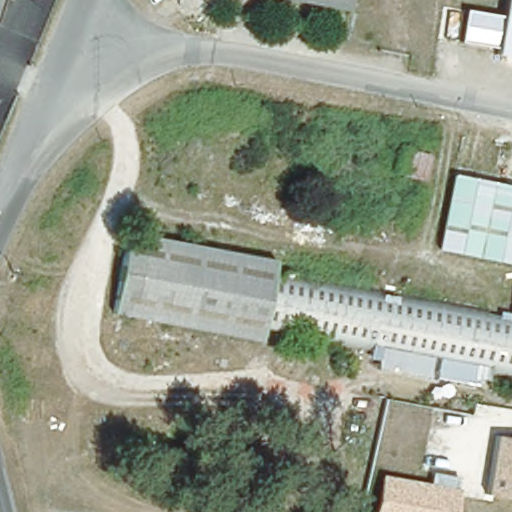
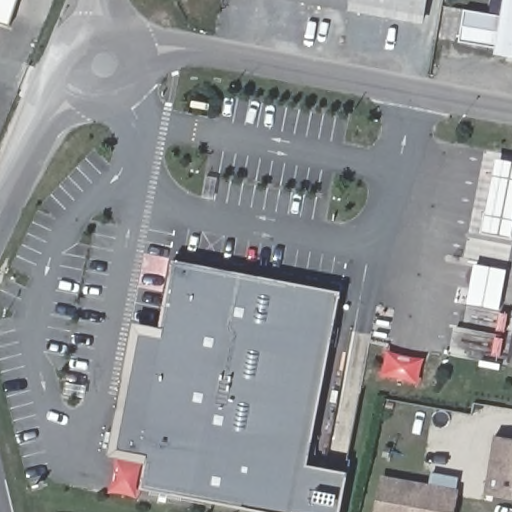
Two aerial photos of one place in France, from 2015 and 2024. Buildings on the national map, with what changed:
unchanged [(3,8),(0,7),(0,0),(6,0),(3,8)]
unchanged [(349,4),(324,0),(350,0),(349,4)]
new [(349,4),(350,0),(428,0),(424,23),(349,11),(349,4)]
unchanged [(497,45),(463,40),(467,13),(502,19),(505,0),(512,0),(512,57),(497,54),(497,45)]
new [(512,240),(482,234),(497,158),(512,161),(512,240)]
demolished [(451,178),(512,189),(512,265),(439,251),(451,178)]
demolished [(380,348),(326,338),(327,332),(313,329),(312,336),(278,330),(279,323),(263,320),(260,337),(112,310),(126,230),(275,257),(273,266),(383,286),(381,293),(396,295),(397,288),(512,309),(512,374),(480,367),(477,380),(377,362),(380,348)]
new [(307,465),(346,473),(339,512),(262,512),(141,489),(146,463),(109,456),(133,323),(161,329),(174,260),(340,293),(307,465)]
new [(507,271),(499,310),(466,304),(475,265),(507,271)]
unchanged [(512,502),(484,496),(495,437),(512,441),(512,502)]
unchanged [(449,512),(375,512),(381,481),(452,494),(449,512)]

